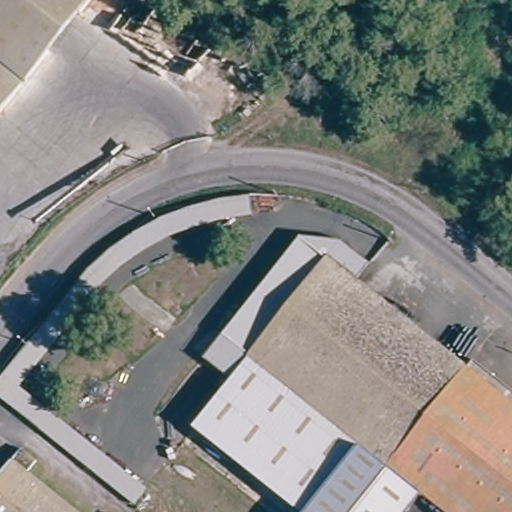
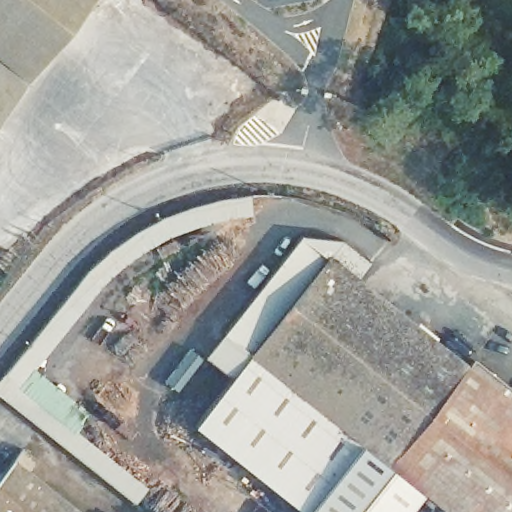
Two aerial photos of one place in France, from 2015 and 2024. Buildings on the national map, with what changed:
unchanged [(0,111),(0,0),(88,0),(0,111)]
unchanged [(242,219),(214,220),(185,227),(154,238),(131,252),(104,276),(46,350),(21,387),(10,402),(0,395),(0,384),(31,339),(91,263),(120,237),(146,222),(179,209),(212,202),(242,201),(247,201),(248,220),(242,219)]
unchanged [(363,446),(311,508),(202,419),(254,356),(227,334),(306,237),(343,246),(371,268),(357,286),(382,305),(401,282),(486,348),(467,372),(469,374),(394,470),(363,446)]
unchanged [(363,446),(394,470),(469,374),(476,364),(512,394),(512,512),(446,512),(424,494),(410,512),(308,512),(311,508),(363,446)]
unchanged [(151,490),(139,505),(10,402),(21,387),(151,490)]
unchanged [(41,457),(31,469),(82,512),(0,512),(0,473),(24,443),(41,457)]
unchanged [(111,512),(105,512),(108,509),(111,512)]

